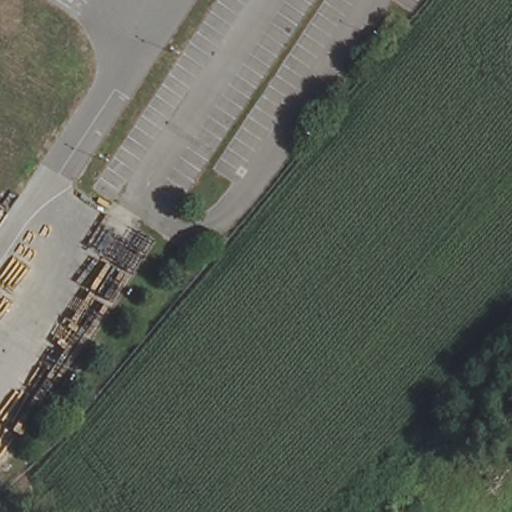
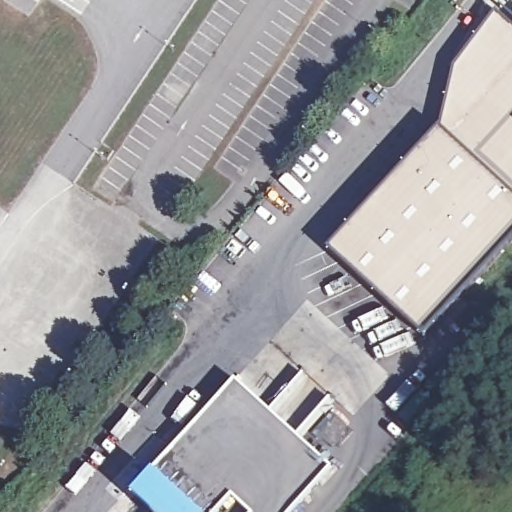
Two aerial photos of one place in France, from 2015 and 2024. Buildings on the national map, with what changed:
new [(424,337),(328,250),(439,127),(454,67),(496,10),(512,25),(512,241),(424,337)]
new [(234,379),(331,467),(291,512),(250,512),(231,495),(216,512),(198,512),(152,470),(194,424),(211,405),(234,379)]
new [(198,512),(151,512),(133,495),(154,472),(198,512)]

